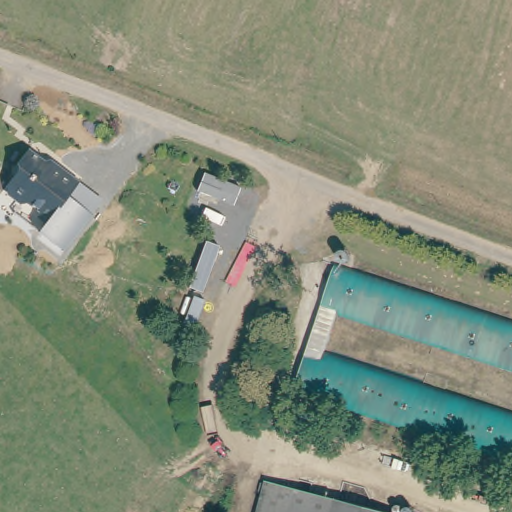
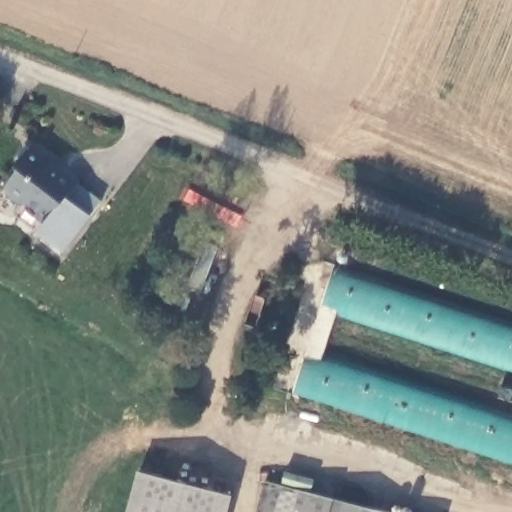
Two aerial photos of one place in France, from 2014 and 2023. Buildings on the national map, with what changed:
unchanged [(35,215),(38,210),(26,201),(23,204),(4,190),(5,184),(21,164),(16,161),(28,148),(56,166),(58,164),(79,180),(74,189),(96,205),(70,241),(63,252),(38,235),(46,224),(35,215)]
unchanged [(512,411),(512,466),(295,380),(344,254),(512,320),(512,368),(339,300),(324,338),(512,411)]
new [(227,512),(128,512),(139,472),(232,495),(227,512)]
unchanged [(251,512),(260,472),(417,512),(251,512)]

